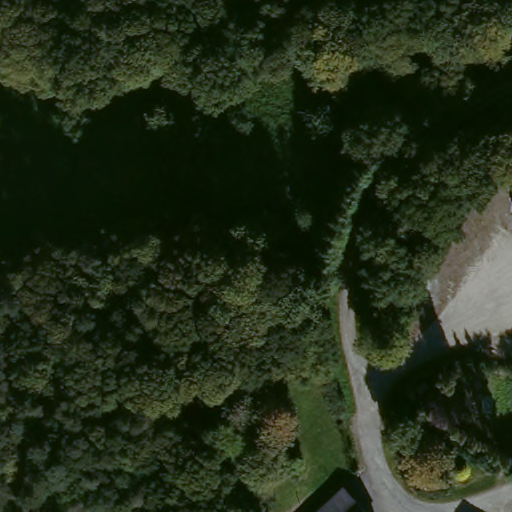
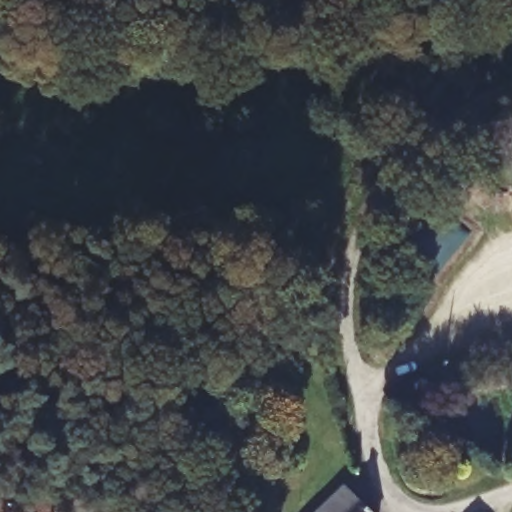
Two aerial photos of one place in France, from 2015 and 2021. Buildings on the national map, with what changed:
unchanged [(310,425),(282,355),(302,351),(326,420),(310,425)]
unchanged [(376,512),(316,512),(344,482),(376,512)]

